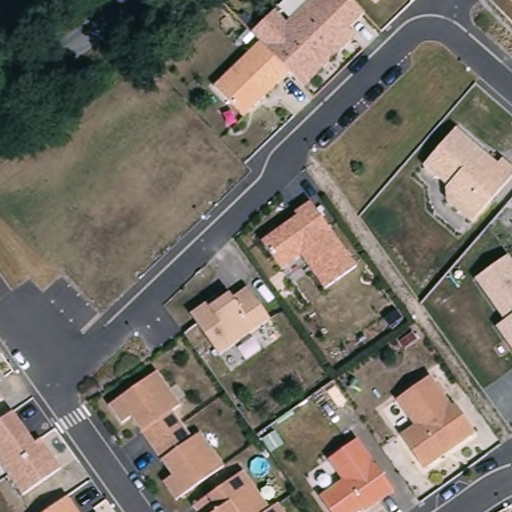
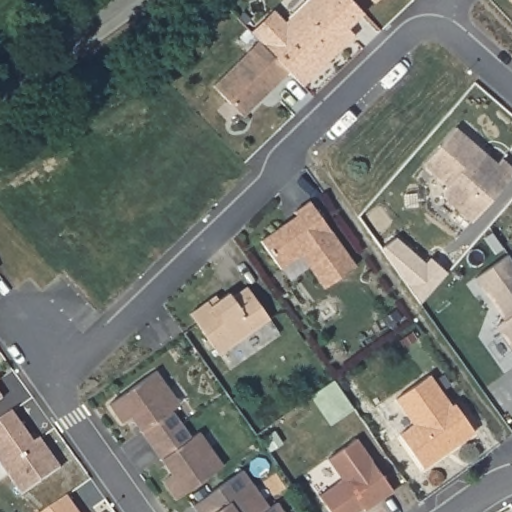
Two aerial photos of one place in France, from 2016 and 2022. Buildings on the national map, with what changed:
unchanged [(250,32),(272,10),(284,23),(308,0),(351,0),(363,13),(347,28),(351,31),(350,39),(302,86),(288,72),(258,41),(250,32)]
unchanged [(372,0),(377,0),(374,2),(372,0)]
unchanged [(512,0),(512,1),(511,0),(512,0)]
unchanged [(288,72),(242,116),(212,85),(258,41),(288,72)]
unchanged [(512,174),(471,222),(445,199),(445,187),(446,185),(422,164),(454,127),(479,148),(496,163),(500,158),(512,168),(512,174)]
unchanged [(310,198),(357,262),(325,287),(302,253),(282,267),(265,238),(310,198)]
new [(395,237),(425,264),(430,258),(447,273),(420,304),(380,248),(395,237)]
unchanged [(512,354),(493,327),(502,322),(475,280),(509,257),(512,261),(512,354)]
unchanged [(248,284),(270,313),(220,350),(191,313),(248,284)]
unchanged [(157,368),(227,462),(177,495),(164,480),(173,471),(131,415),(122,422),(111,402),(157,368)]
unchanged [(433,372),(452,402),(457,399),(478,430),(422,468),(400,432),(413,421),(397,398),(433,372)]
unchanged [(1,381),(0,382),(0,380),(1,381)]
unchanged [(4,397),(0,400),(0,392),(4,397)]
unchanged [(35,443),(42,439),(64,471),(24,498),(0,465),(0,422),(14,412),(35,443)]
unchanged [(342,477),(328,455),(358,436),(396,489),(363,512),(334,512),(322,495),(342,477)]
unchanged [(244,463),(287,512),(201,512),(192,501),(244,463)]
unchanged [(77,512),(49,512),(69,500),(77,512)]

